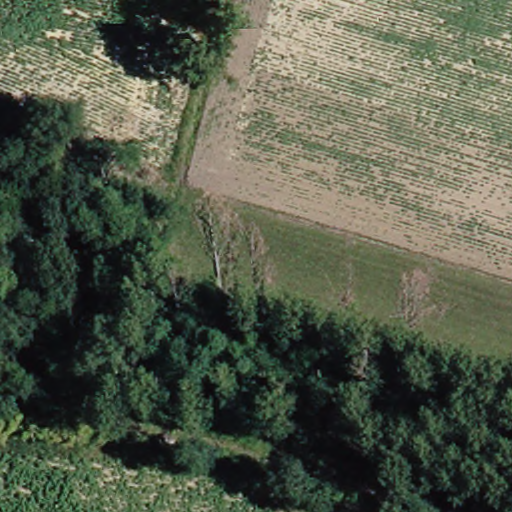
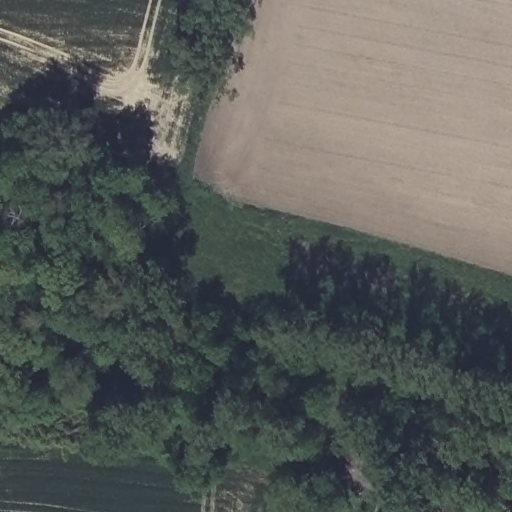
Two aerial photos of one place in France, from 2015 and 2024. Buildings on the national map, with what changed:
[]

